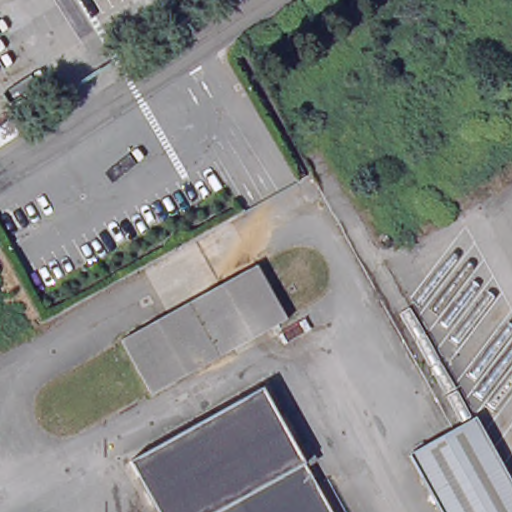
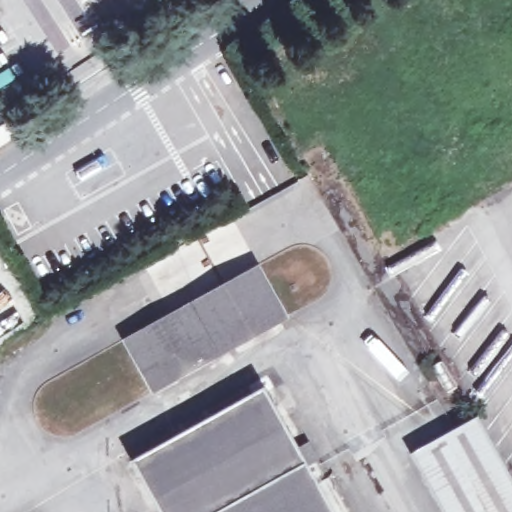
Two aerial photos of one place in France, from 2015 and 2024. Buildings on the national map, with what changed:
unchanged [(62,226),(72,220),(78,229),(67,235),(62,226)]
unchanged [(283,314),(148,389),(117,334),(253,261),(280,308),(283,314)]
unchanged [(131,458),(264,383),(298,442),(310,436),(320,455),(308,462),(318,479),(337,512),(162,512),(131,458)]
unchanged [(486,424),(512,471),(512,512),(445,512),(410,449),(457,424),(477,413),(479,412),(486,424)]

